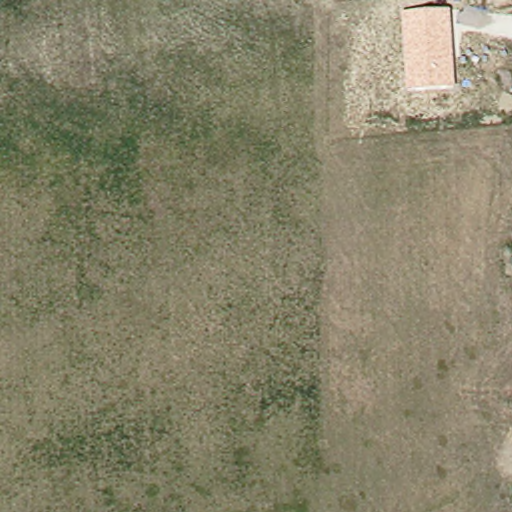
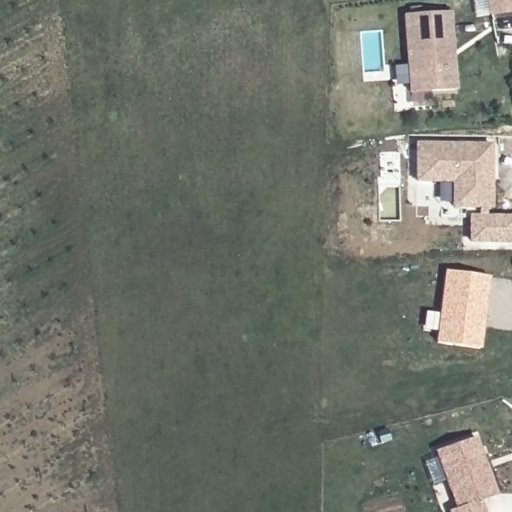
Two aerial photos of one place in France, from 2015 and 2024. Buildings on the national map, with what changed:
new [(490,0),(512,0),(512,11),(492,14),(490,0)]
unchanged [(456,92),(407,97),(401,18),(451,14),(456,92)]
new [(496,208),(454,208),(453,182),(417,181),(417,141),(495,141),(496,208)]
new [(512,215),(512,244),(467,244),(467,215),(512,215)]
new [(443,270),(488,277),(479,351),(433,343),(443,270)]
new [(454,510),(433,451),(475,436),(496,495),(480,501),(484,512),(447,512),(454,510)]

